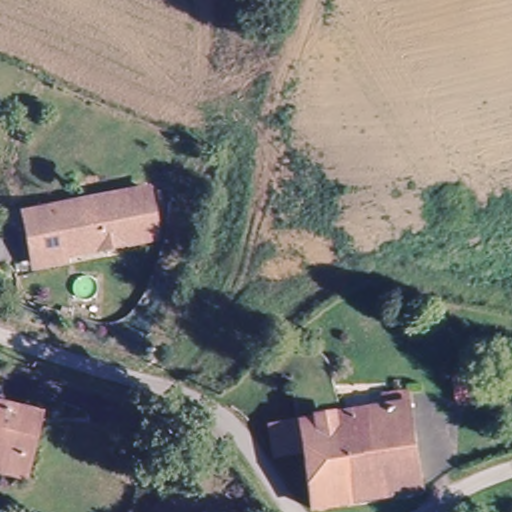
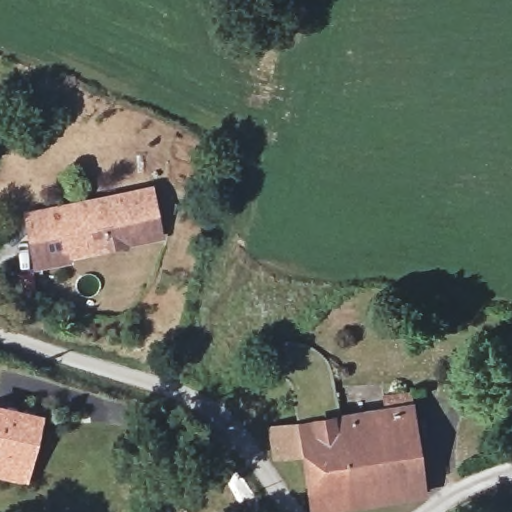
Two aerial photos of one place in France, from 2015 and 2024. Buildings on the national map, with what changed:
unchanged [(37,262),(28,210),(152,186),(160,227),(66,245),(69,256),(37,262)]
unchanged [(160,227),(162,238),(69,256),(66,245),(160,227)]
unchanged [(482,369),(486,396),(453,400),(451,390),(450,373),(474,370),(482,369)]
unchanged [(306,511),(300,460),(295,420),(383,404),(379,385),(411,379),(414,398),(428,490),(306,511)]
unchanged [(0,408),(34,417),(25,463),(22,480),(0,475),(0,408)]
unchanged [(300,460),(273,463),(270,458),(267,425),(295,420),(300,460)]

